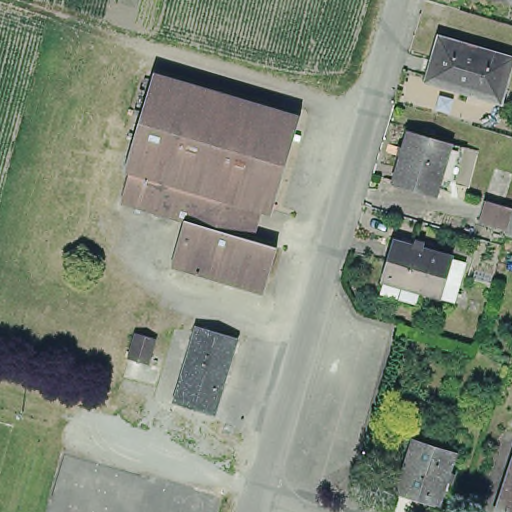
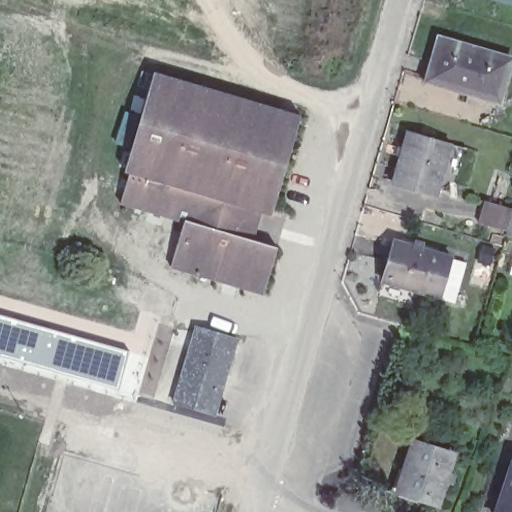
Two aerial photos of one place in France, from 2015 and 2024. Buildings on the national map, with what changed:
unchanged [(437,40),(512,56),(502,99),(437,85),(428,83),(433,62),(437,40)]
unchanged [(154,73),(170,77),(157,136),(137,131),(154,73)]
unchanged [(157,136),(170,77),(193,84),(163,215),(140,209),(157,136)]
unchanged [(193,84),(215,90),(185,221),(163,215),(193,84)]
unchanged [(218,280),(195,274),(175,268),(185,221),(215,90),(235,96),(259,102),(301,114),(272,213),(255,209),(247,238),(278,246),(273,264),(265,293),(218,280)]
unchanged [(452,141),(437,194),(395,182),(403,153),(388,149),(391,142),(405,146),(410,129),(452,141)]
unchanged [(123,204),(132,173),(127,171),(137,131),(157,136),(140,209),(123,204)]
unchanged [(476,219),(482,199),(512,207),(512,231),(506,229),(476,219)]
unchanged [(437,301),(379,283),(390,244),(449,261),(437,301)]
new [(129,349),(118,386),(0,353),(0,314),(129,349)]
unchanged [(192,338),(195,326),(207,329),(236,338),(213,415),(188,408),(172,403),(192,338)]
new [(135,333),(154,339),(147,364),(127,358),(135,333)]
unchanged [(452,447),(437,495),(397,483),(412,434),(452,447)]
unchanged [(512,512),(497,512),(512,469),(512,512)]

